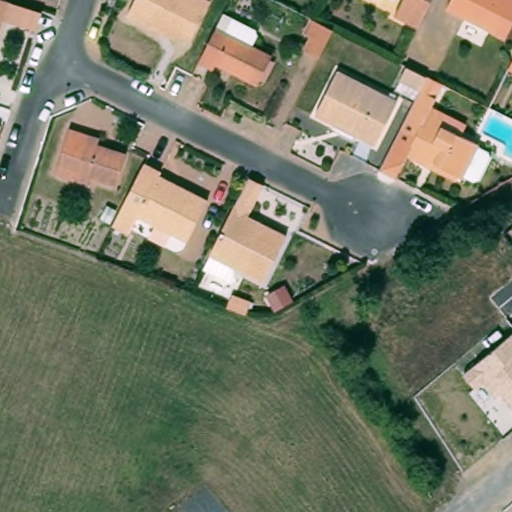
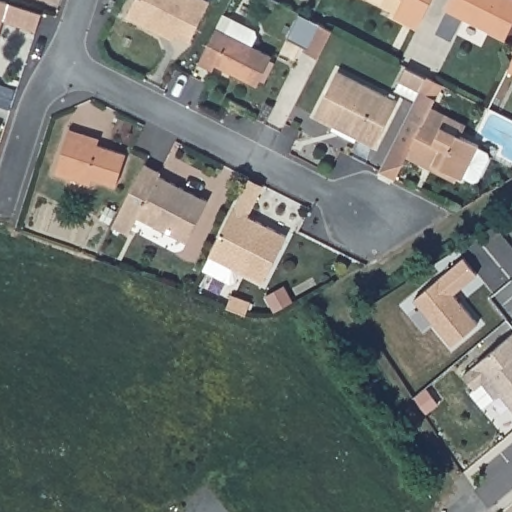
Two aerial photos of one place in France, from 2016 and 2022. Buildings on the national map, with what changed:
unchanged [(152,32),(123,18),(132,0),(200,0),(206,3),(186,43),(172,36),(169,41),(152,32)]
unchanged [(413,26),(390,14),(397,0),(426,0),(413,26)]
unchanged [(500,38),(441,7),(445,0),(512,0),(512,15),(500,38)]
unchanged [(0,19),(0,2),(5,4),(0,19)]
unchanged [(325,55),(310,47),(316,34),(310,31),(317,17),(323,20),(338,27),(325,55)]
unchanged [(195,65),(212,30),(268,58),(253,87),(212,66),(209,72),(195,65)]
unchanged [(504,68),(512,52),(512,72),(504,68)]
unchanged [(328,126),(330,123),(311,113),(334,69),(393,99),(371,144),(353,135),(352,138),(328,126)]
unchanged [(407,159),(416,141),(400,133),(403,128),(419,96),(420,94),(400,84),(407,70),(427,80),(443,88),(437,102),(432,111),(466,129),(461,139),(479,149),(478,151),(489,156),(490,161),(479,183),(474,185),(464,179),(463,181),(458,179),(456,183),(424,167),(407,159)]
unchanged [(69,179),(52,174),(66,131),(82,136),(96,140),(94,147),(123,156),(113,187),(90,179),(88,185),(69,179)]
unchanged [(155,177),(204,203),(184,243),(135,218),(126,235),(110,227),(141,165),(157,174),(155,177)]
unchanged [(228,285),(200,271),(207,257),(206,257),(232,206),(247,214),(244,218),(283,238),(260,284),(238,273),(233,283),(228,285)]
new [(464,257),(477,273),(453,293),(478,323),(452,344),(414,298),(464,257)]
unchanged [(227,311),(231,299),(250,306),(246,318),(227,311)]
unchanged [(499,393),(495,396),(482,381),(473,388),(463,374),(512,335),(512,408),(499,393)]

